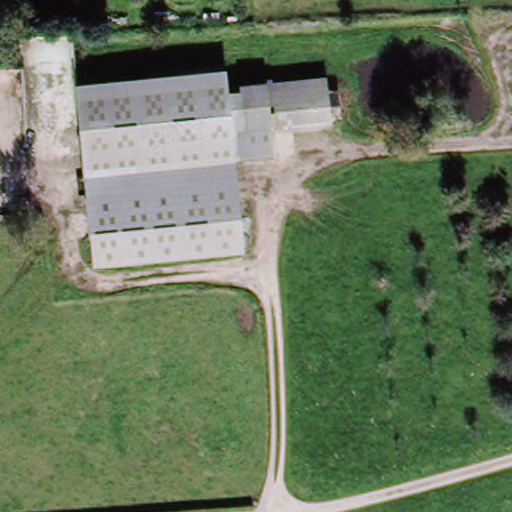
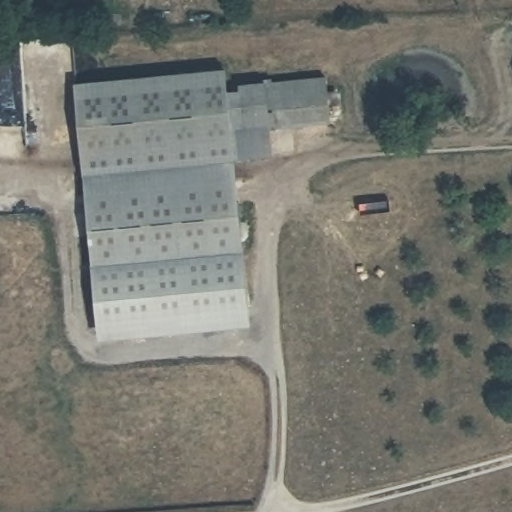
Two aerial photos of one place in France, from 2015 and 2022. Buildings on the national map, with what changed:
unchanged [(230,85),(231,91),(234,91),(236,85),(330,77),(332,118),(272,123),(275,155),(235,158),(242,249),(92,260),(85,170),(78,80),(229,69),(230,85)]
new [(242,249),(250,326),(99,340),(92,260),(242,249)]

